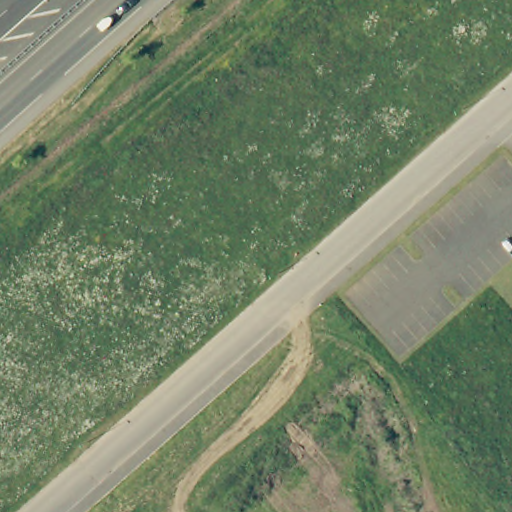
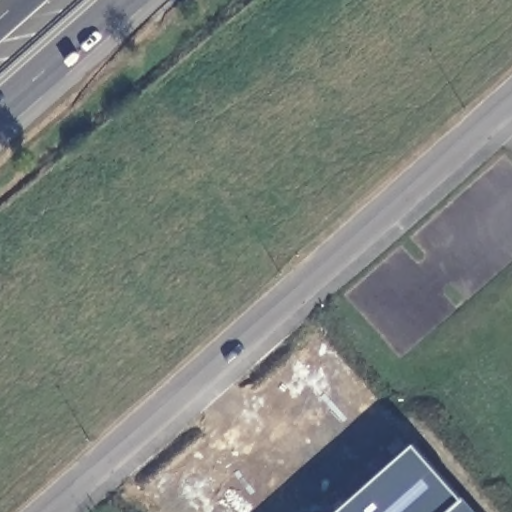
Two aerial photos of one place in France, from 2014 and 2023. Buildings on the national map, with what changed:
new [(467,512),(343,512),(413,451),(467,512)]

